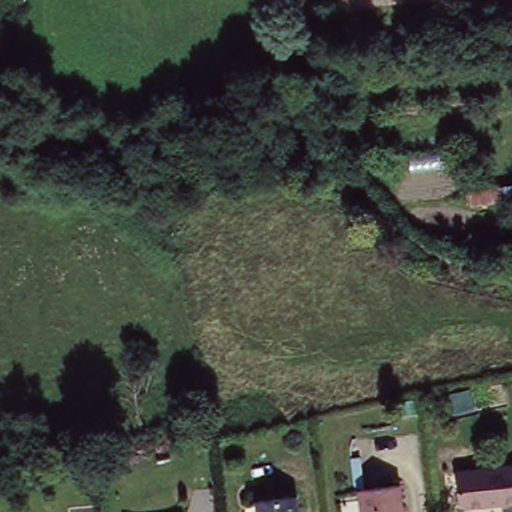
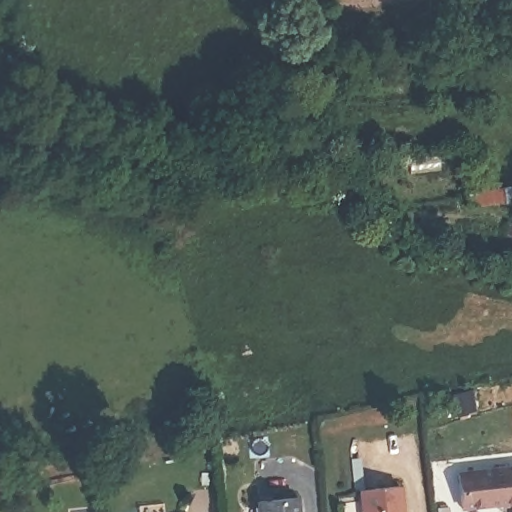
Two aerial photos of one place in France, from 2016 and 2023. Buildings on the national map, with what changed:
unchanged [(454,197),(452,186),(491,180),(491,178),(512,176),(512,187),(492,190),(492,192),(454,197)]
unchanged [(512,464),(512,499),(463,505),(459,471),(512,464)]
unchanged [(400,484),(403,512),(362,512),(359,488),(400,484)]
unchanged [(297,497),(298,512),(257,512),(256,501),(297,497)]

